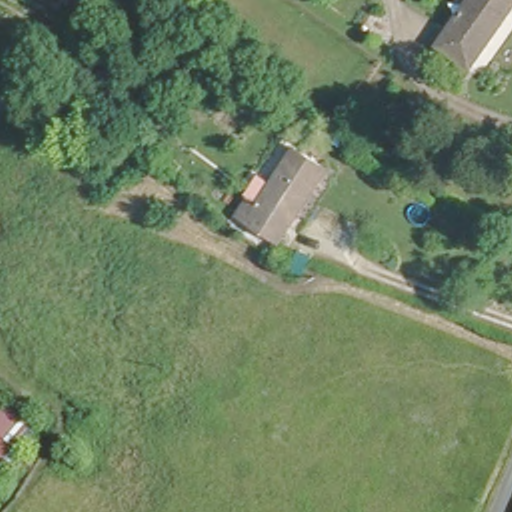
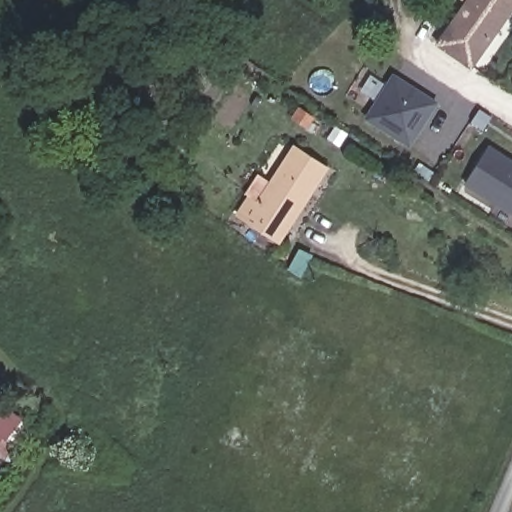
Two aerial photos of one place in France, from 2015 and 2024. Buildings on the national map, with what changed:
unchanged [(470,57),(437,34),(461,0),(508,0),(470,57)]
new [(392,73),(437,102),(410,147),(365,118),(392,73)]
new [(488,144),(512,158),(512,214),(466,182),(488,144)]
unchanged [(236,211),(247,192),(257,199),(292,145),(326,166),(279,239),(236,211)]
demolished [(323,367),(310,360),(315,352),(328,359),(323,367)]
new [(0,402),(34,428),(11,463),(0,456),(0,402)]

